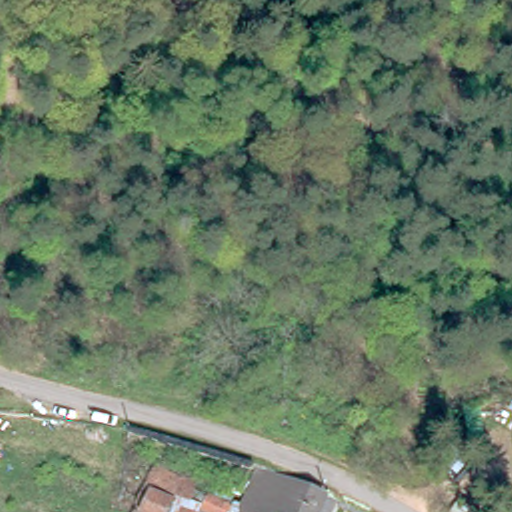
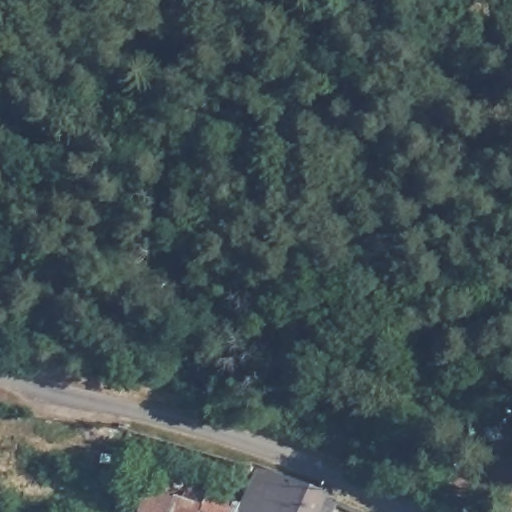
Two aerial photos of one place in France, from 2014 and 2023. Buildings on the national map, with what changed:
unchanged [(258,468),(336,500),(331,512),(246,512),(242,510),(258,468)]

